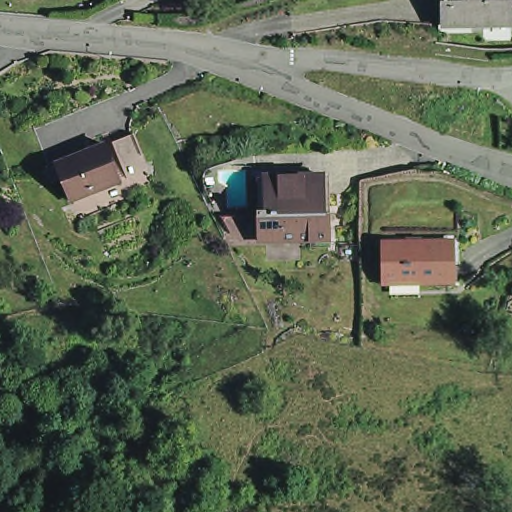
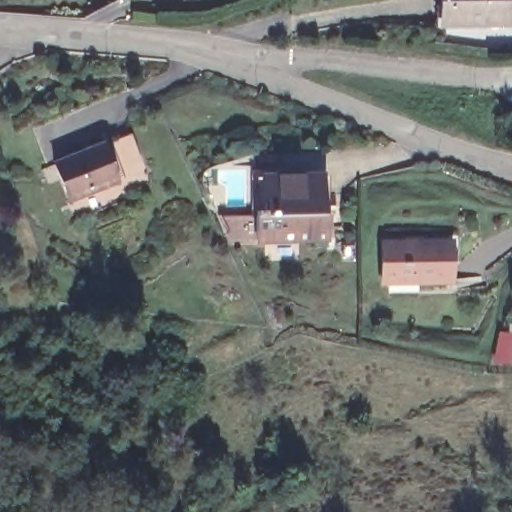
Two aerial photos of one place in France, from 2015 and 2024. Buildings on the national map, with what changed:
unchanged [(507,0),(507,30),(444,30),(441,30),(441,8),(441,0),(507,0)]
unchanged [(128,185),(111,143),(133,134),(150,176),(128,185)]
unchanged [(118,181),(68,201),(54,164),(104,145),(118,181)]
unchanged [(262,183),(323,182),(323,218),(327,219),(328,243),(256,245),(255,215),(263,215),(262,183)]
unchanged [(449,278),(381,279),(380,239),(449,239),(449,278)]

